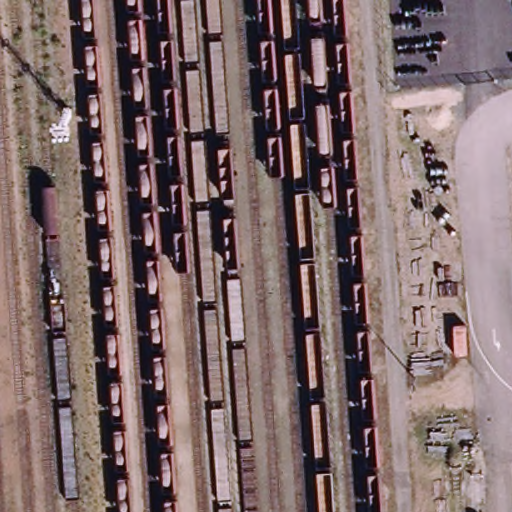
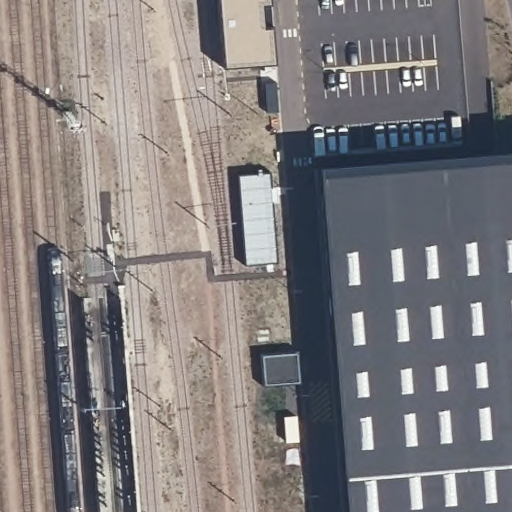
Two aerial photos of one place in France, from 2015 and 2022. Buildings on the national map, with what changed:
new [(319,162),(512,147),(512,512),(346,512),(319,162)]

